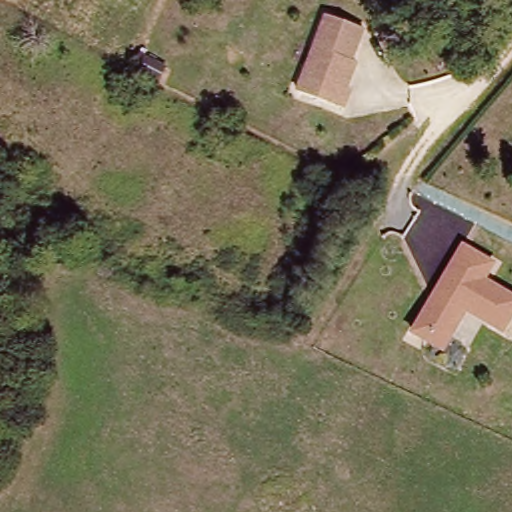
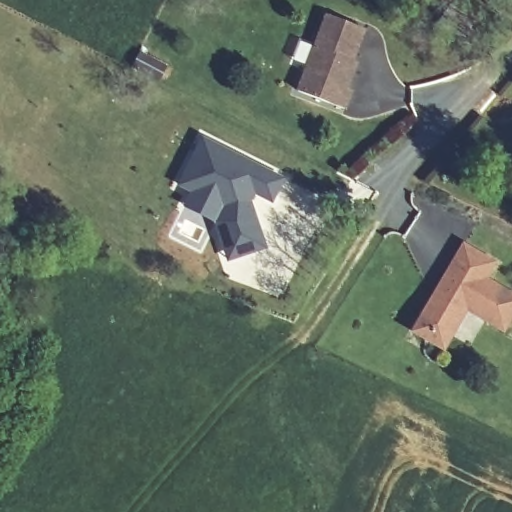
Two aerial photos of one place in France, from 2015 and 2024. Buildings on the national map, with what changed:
unchanged [(359,74),(355,88),(358,89),(352,108),(303,92),(329,15),(369,26),(359,59),(363,59),(359,74)]
new [(215,224),(184,207),(191,192),(178,186),(203,137),(286,179),(274,204),(255,194),(253,202),(269,249),(229,263),(215,224)]
unchanged [(507,325),(469,305),(449,346),(418,330),(463,241),(494,257),(485,274),(512,288),(512,315),(507,325)]

